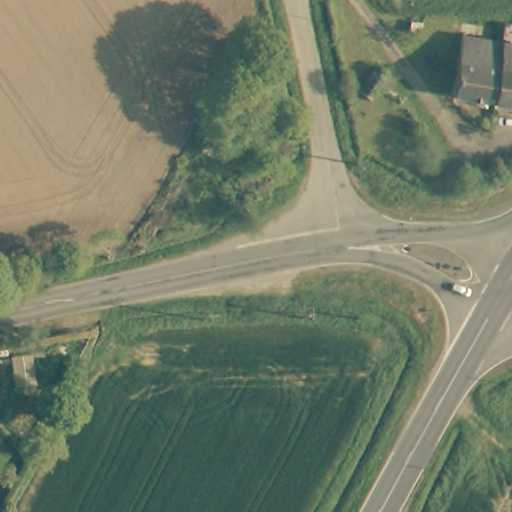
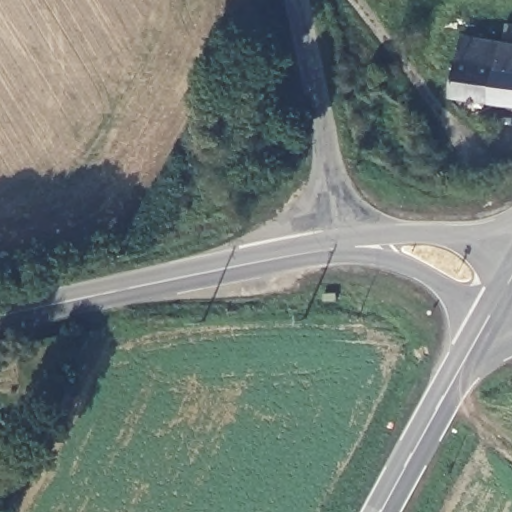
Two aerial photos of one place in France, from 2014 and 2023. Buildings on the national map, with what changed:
unchanged [(512,33),(512,102),(505,102),(511,43),(512,33)]
unchanged [(511,43),(505,102),(463,99),(469,43),(511,43)]
unchanged [(360,85),(369,70),(377,57),(394,66),(391,74),(386,82),(377,96),(360,85)]

